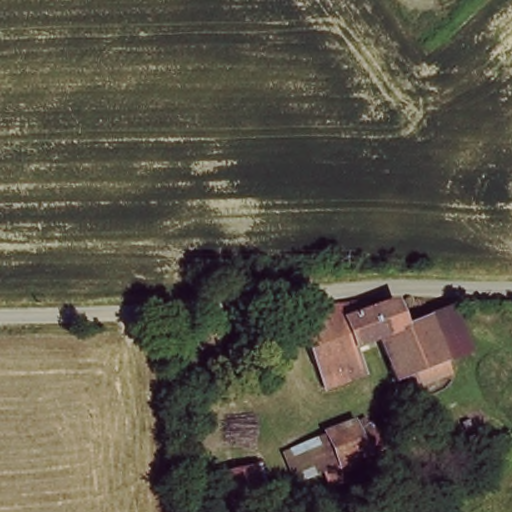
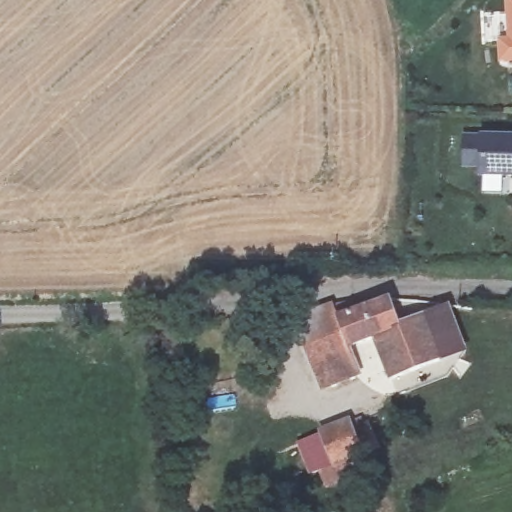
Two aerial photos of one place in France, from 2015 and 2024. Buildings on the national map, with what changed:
new [(500,63),(499,39),(508,38),(506,0),(512,0),(512,62),(500,63)]
new [(479,177),(480,168),(464,168),(465,136),(482,135),(512,136),(512,179),(479,177)]
unchanged [(308,309),(333,302),(337,314),(392,295),(400,320),(424,312),(444,370),(415,381),(410,372),(390,381),(375,340),(345,350),(354,372),(318,384),(298,329),(308,309)]
unchanged [(424,312),(447,304),(467,362),(444,370),(424,312)]
unchanged [(299,437),(320,430),(350,420),(355,435),(370,430),(377,444),(332,459),(309,466),(299,437)]
unchanged [(264,469),(271,512),(204,512),(197,480),(264,469)]

